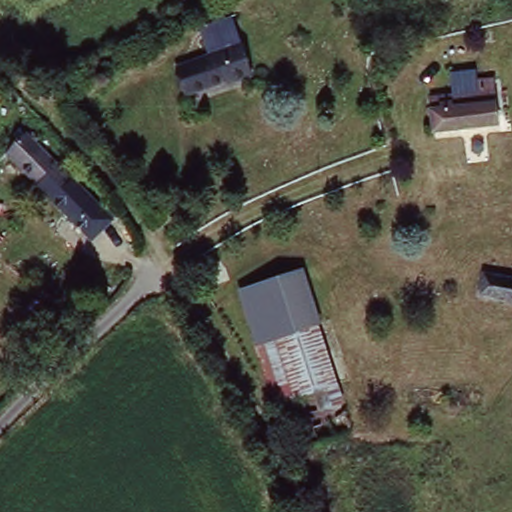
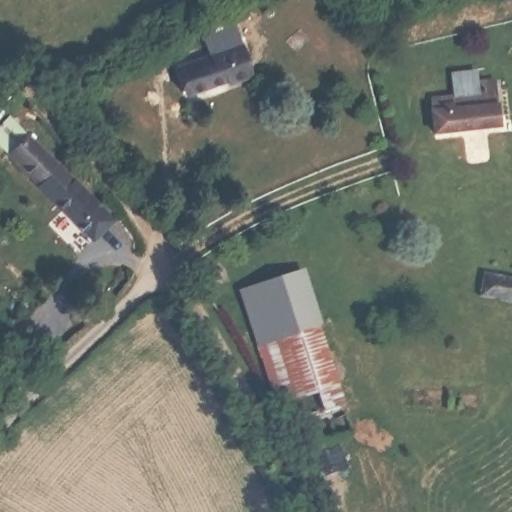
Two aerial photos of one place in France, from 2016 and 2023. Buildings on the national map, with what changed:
unchanged [(177,64),(189,62),(187,54),(203,50),(200,38),(235,30),(236,36),(245,34),(254,83),(241,84),(239,78),(184,93),(177,64)]
unchanged [(500,124),(437,132),(433,99),(457,97),(454,73),(483,69),(485,83),(497,82),(500,124)]
unchanged [(111,223),(91,241),(8,156),(28,139),(111,223)]
unchanged [(280,430),(295,424),(283,394),(273,396),(238,285),(303,268),(347,419),(283,441),(280,430)]
unchanged [(512,300),(477,292),(483,268),(512,274),(512,300)]

